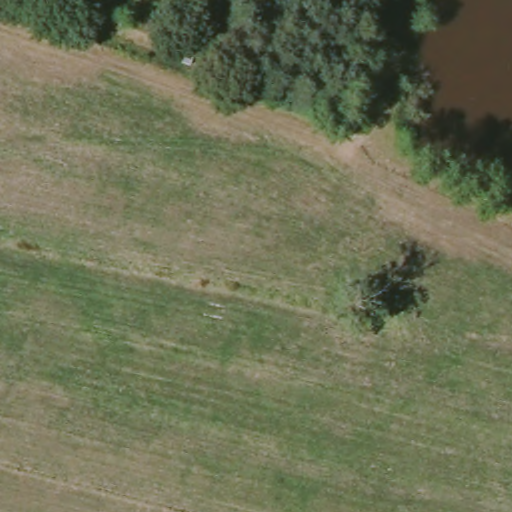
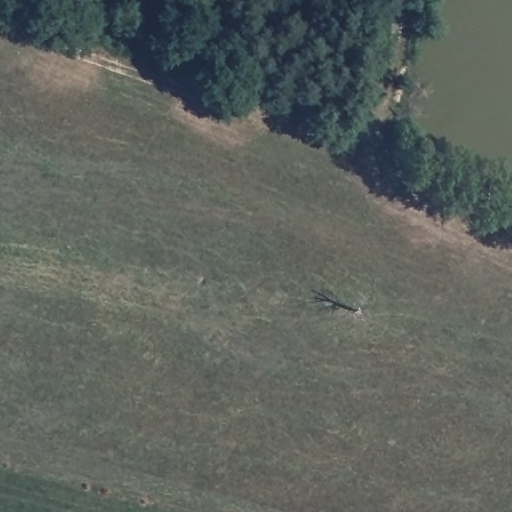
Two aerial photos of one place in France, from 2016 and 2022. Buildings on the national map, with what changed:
unchanged [(164,57),(169,43),(196,52),(191,66),(164,57)]

